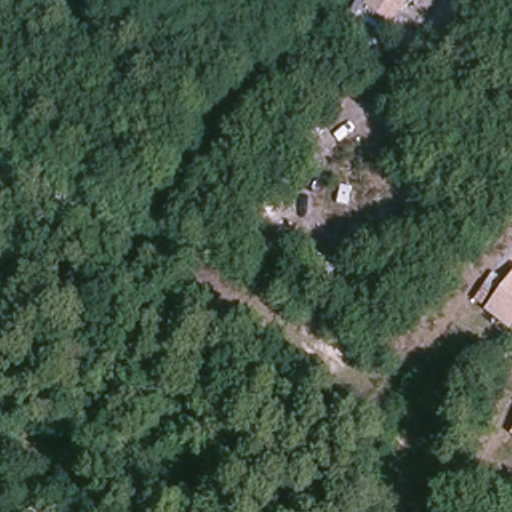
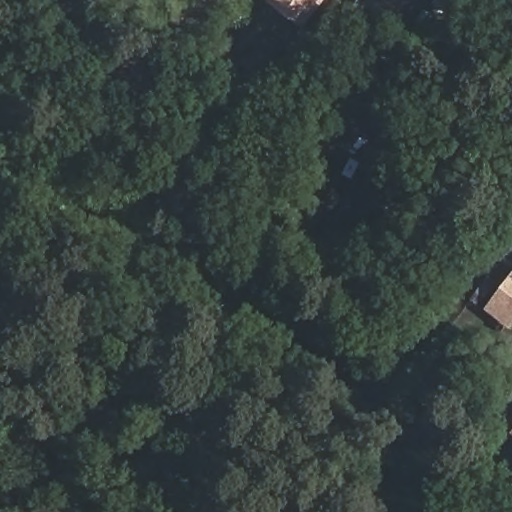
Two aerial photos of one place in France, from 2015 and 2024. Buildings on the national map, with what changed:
new [(269,0),(325,0),(304,28),(269,0)]
unchanged [(373,11),(365,23),(350,13),(360,0),(412,0),(394,25),(373,11)]
unchanged [(485,309),(486,307),(475,299),(495,270),(507,280),(512,274),(512,328),(512,329),(485,309)]

